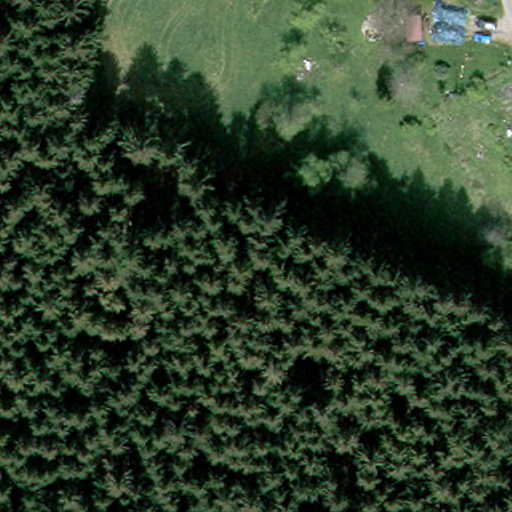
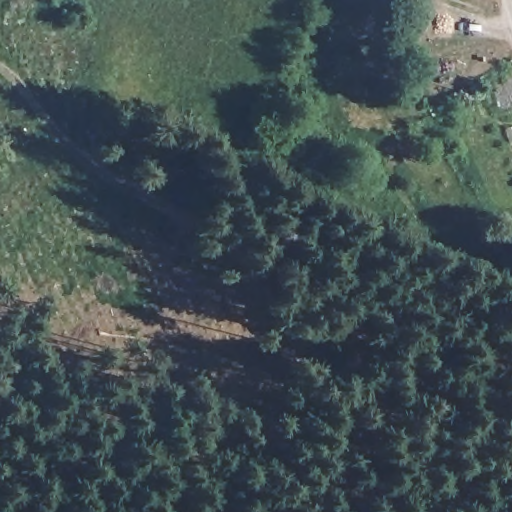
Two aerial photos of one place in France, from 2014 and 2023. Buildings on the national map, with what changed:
[]

